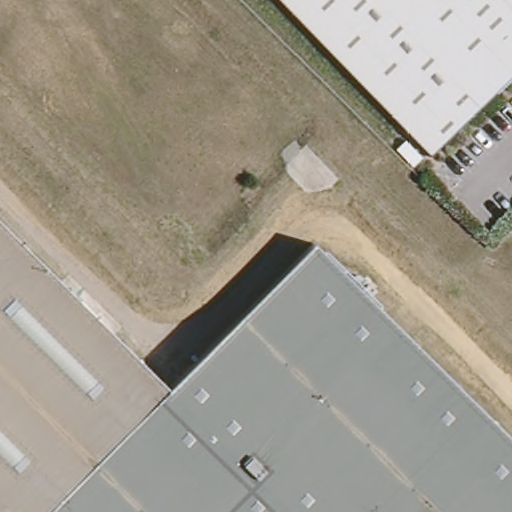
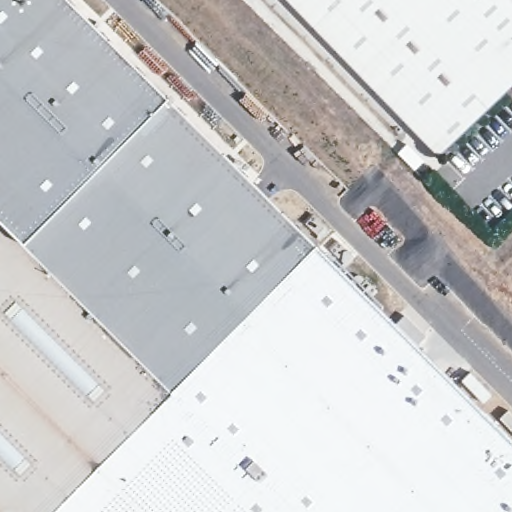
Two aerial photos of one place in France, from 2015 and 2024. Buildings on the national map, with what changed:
new [(166,389),(17,241),(0,225),(0,0),(67,0),(163,96),(311,244),(166,389)]
unchanged [(432,159),(431,158),(422,166),(406,149),(415,141),(280,0),(512,0),(512,83),(432,159)]
unchanged [(166,389),(311,244),(512,446),(512,512),(0,512),(0,225),(166,389)]

